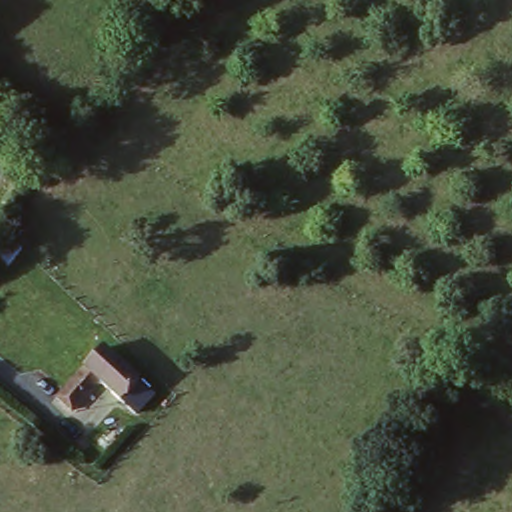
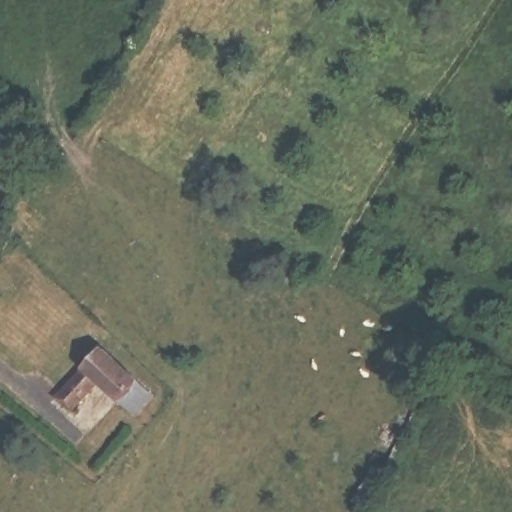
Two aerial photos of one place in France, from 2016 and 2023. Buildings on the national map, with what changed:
unchanged [(55,397),(82,367),(104,345),(141,378),(154,392),(135,414),(120,401),(96,381),(71,411),(55,397)]

